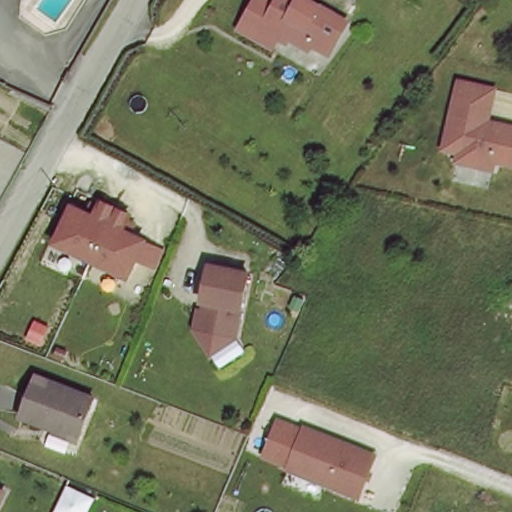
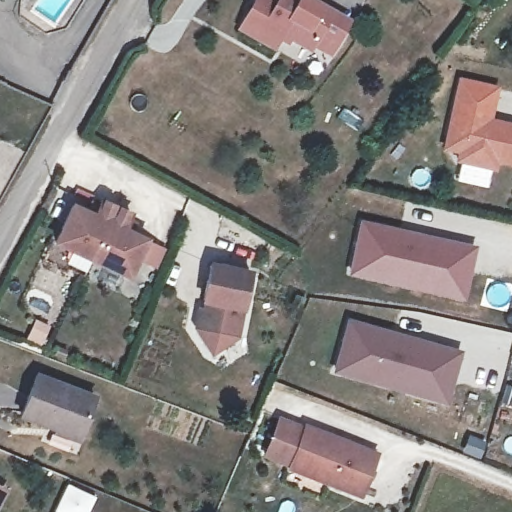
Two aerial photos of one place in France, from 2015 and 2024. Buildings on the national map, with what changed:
unchanged [(316,40),(288,24),(285,30),(279,40),(245,21),(251,10),(257,0),(333,0),(354,12),(342,34),(336,44),(320,34),(316,40)]
unchanged [(469,77),(505,86),(496,118),(507,121),(512,122),(512,160),(502,158),(500,166),(464,157),(466,149),(451,144),(456,128),(469,77)]
unchanged [(92,204),(99,207),(101,202),(116,209),(130,215),(128,221),(135,224),(130,234),(145,241),(127,277),(91,259),(55,242),(71,209),(73,205),(88,213),(92,204)]
new [(462,299),(346,274),(358,220),(473,247),(462,299)]
unchanged [(248,282),(234,343),(205,359),(193,338),(197,317),(202,318),(205,304),(200,303),(209,267),(248,282)]
new [(457,364),(442,419),(326,384),(342,329),(457,364)]
unchanged [(20,422),(37,381),(93,404),(77,444),(20,422)]
unchanged [(358,495),(260,454),(276,414),(295,423),(298,419),(372,453),(358,495)]
unchanged [(3,493),(0,499),(0,492),(3,493)]

